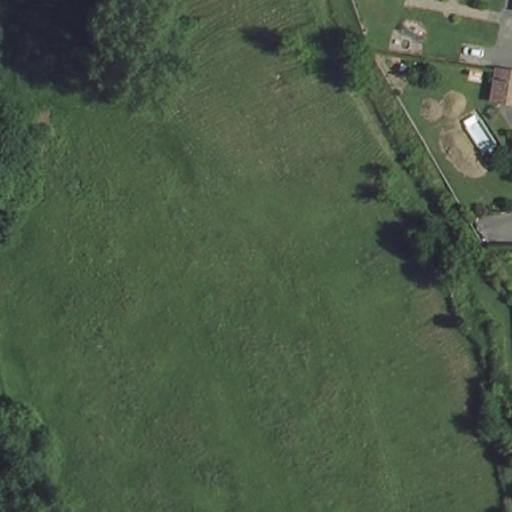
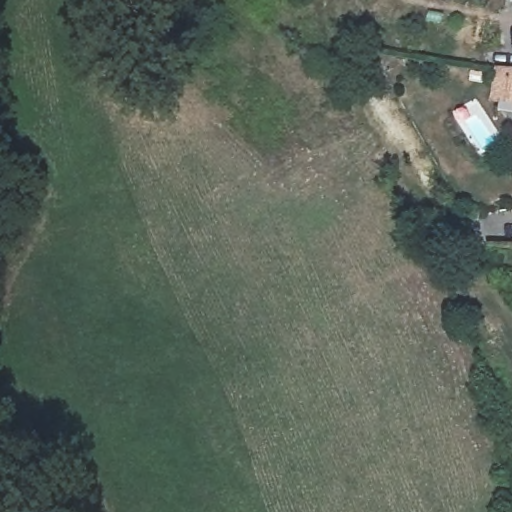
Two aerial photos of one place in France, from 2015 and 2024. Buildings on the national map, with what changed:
unchanged [(512,100),(492,96),(497,64),(512,66),(512,100)]

